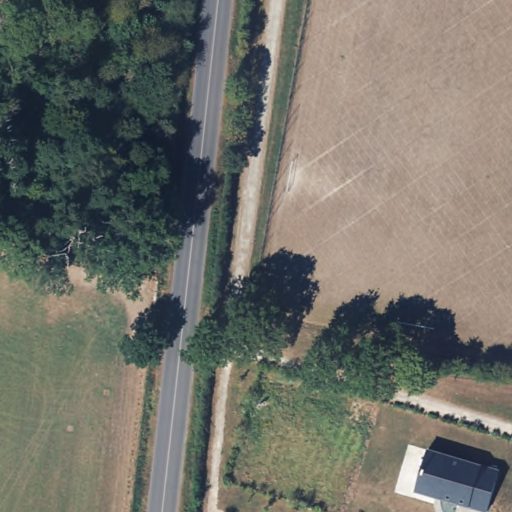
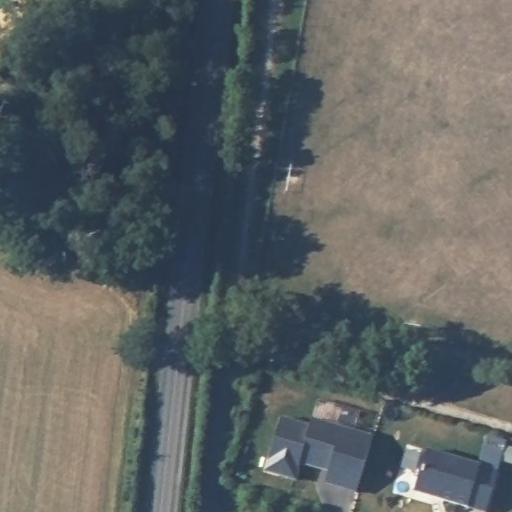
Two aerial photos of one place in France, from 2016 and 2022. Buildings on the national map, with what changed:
new [(300,462),(295,478),(265,470),(281,417),(310,426),(312,419),(373,437),(357,492),(325,482),(329,471),(318,467),(300,462)]
unchanged [(488,511),(468,506),(415,492),(429,449),(480,466),(497,470),(488,511)]

